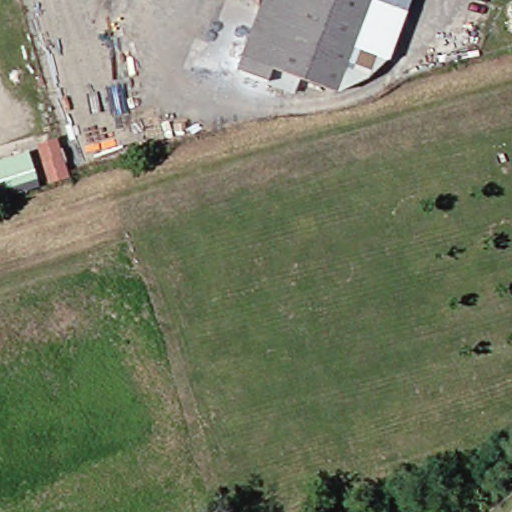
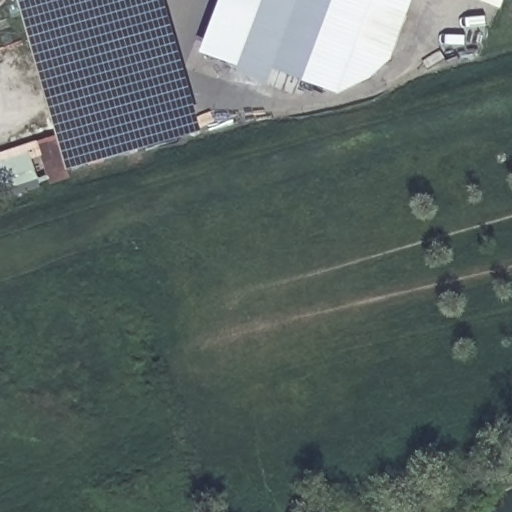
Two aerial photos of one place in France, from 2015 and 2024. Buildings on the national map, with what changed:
new [(204,131),(70,169),(59,134),(21,0),(166,0),(204,131)]
new [(202,51),(221,0),(267,0),(263,12),(244,65),(202,51)]
unchanged [(350,89),(331,81),(263,12),(267,0),(417,0),(417,2),(408,1),(380,88),(372,90),(359,91),(350,89)]
unchanged [(315,76),(309,90),(244,65),(263,12),(331,81),(315,76)]
new [(71,177),(0,200),(0,152),(59,134),(70,169),(71,177)]

